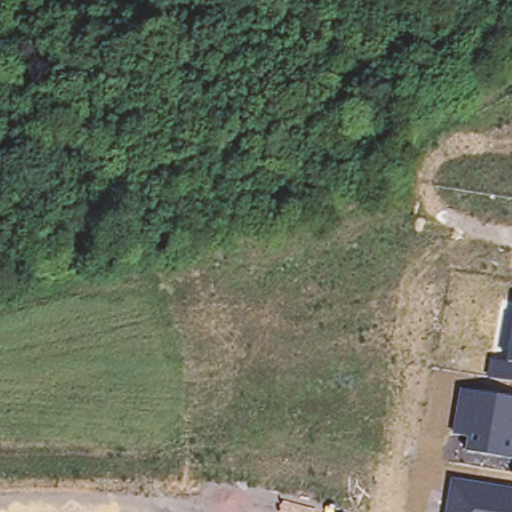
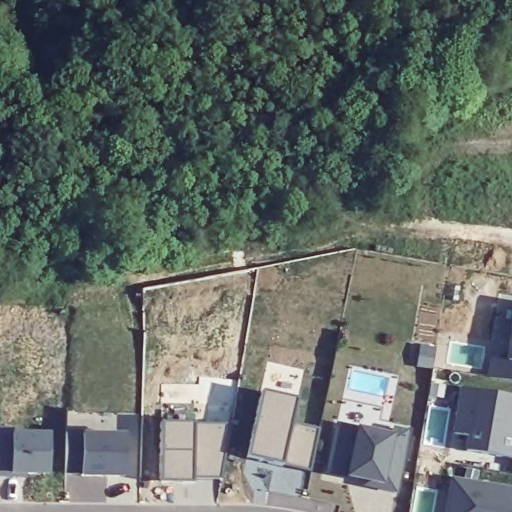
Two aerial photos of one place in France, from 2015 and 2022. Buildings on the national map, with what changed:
unchanged [(512,303),(512,379),(483,374),(487,357),(501,359),(509,302),(512,303)]
unchanged [(512,396),(512,459),(462,451),(462,437),(450,433),(456,387),(512,396)]
new [(294,402),(289,425),(318,431),(310,471),(258,461),(261,445),(249,443),(259,393),(294,402)]
new [(158,423),(231,424),(221,480),(158,478),(158,423)]
new [(390,435),(392,430),(405,432),(394,492),(363,485),(364,481),(326,473),(336,424),(390,435)]
new [(10,475),(10,477),(0,477),(0,430),(10,430),(11,435),(48,435),(48,475),(10,475)]
new [(123,478),(80,477),(64,475),(65,433),(79,433),(123,434),(123,478)]
unchanged [(512,484),(512,512),(441,512),(448,473),(512,484)]

